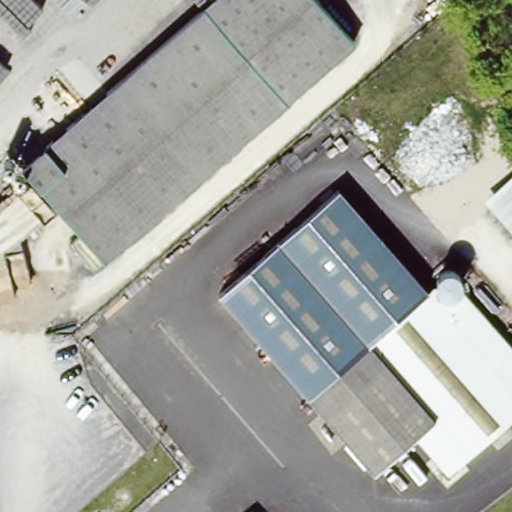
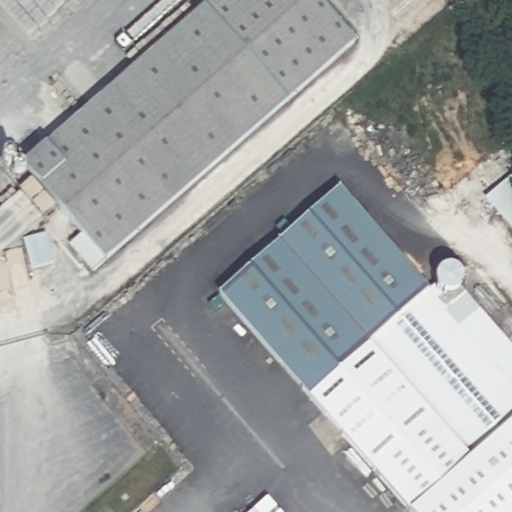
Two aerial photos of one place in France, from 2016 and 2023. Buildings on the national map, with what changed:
unchanged [(280,102),(100,260),(89,269),(67,245),(78,235),(53,204),(40,216),(15,190),(25,180),(15,170),(38,147),(139,60),(122,45),(130,36),(114,19),(134,0),(140,0),(159,20),(170,12),(182,20),(190,15),(176,6),(184,0),(309,0),(347,42),(280,102)]
unchanged [(512,186),(512,229),(491,204),(512,186)]
unchanged [(215,295),(332,190),(429,288),(367,339),(307,402),(215,295)]
unchanged [(452,266),(457,268),(461,271),(463,275),(464,280),(462,285),(460,290),(457,293),(452,295),(447,295),(442,293),(439,290),(437,286),(435,281),(436,276),(438,271),(442,268),(447,266),(452,266)]
unchanged [(444,310),(477,347),(495,330),(512,350),(512,417),(445,473),(412,436),(372,469),(307,402),(367,339),(429,288),(444,310)]
unchanged [(495,330),(477,347),(444,310),(463,293),(495,330)]
new [(372,469),(412,436),(445,473),(512,417),(512,512),(408,512),(372,469)]

